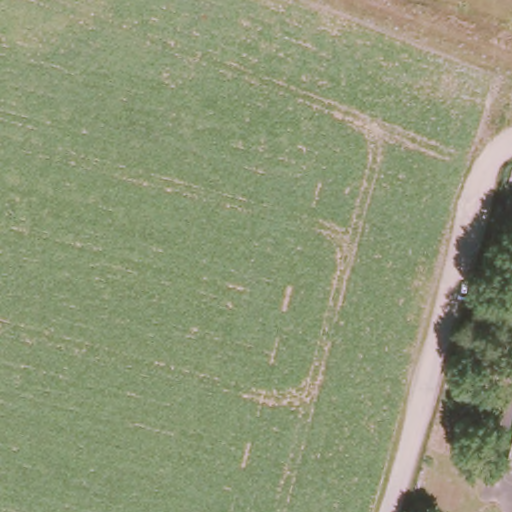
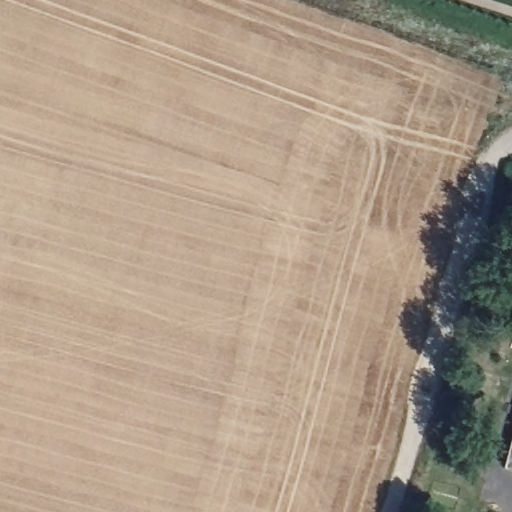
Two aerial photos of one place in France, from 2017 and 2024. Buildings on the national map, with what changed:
unchanged [(512,432),(512,462),(504,460),(512,432)]

